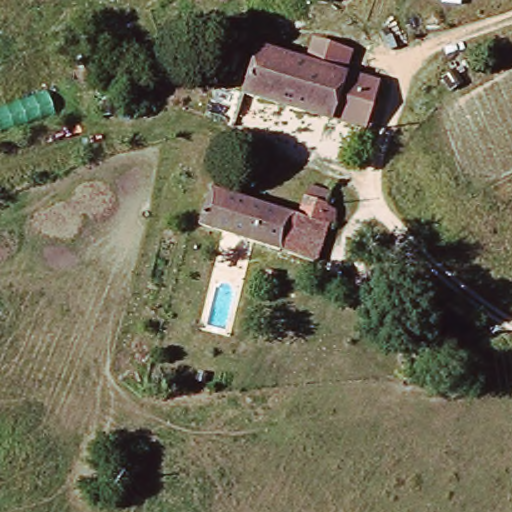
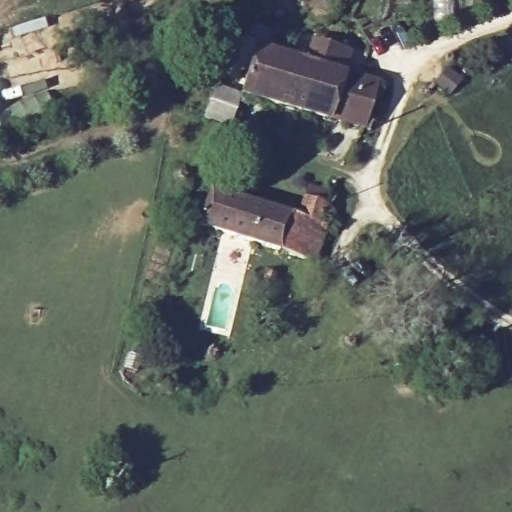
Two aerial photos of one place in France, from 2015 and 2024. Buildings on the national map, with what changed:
unchanged [(378,79),(364,126),(355,124),(237,92),(251,49),(378,79)]
unchanged [(243,193),(305,213),(316,181),(341,189),(335,204),(344,214),(341,226),(332,230),(322,259),(294,250),(206,224),(218,185),(243,193)]

